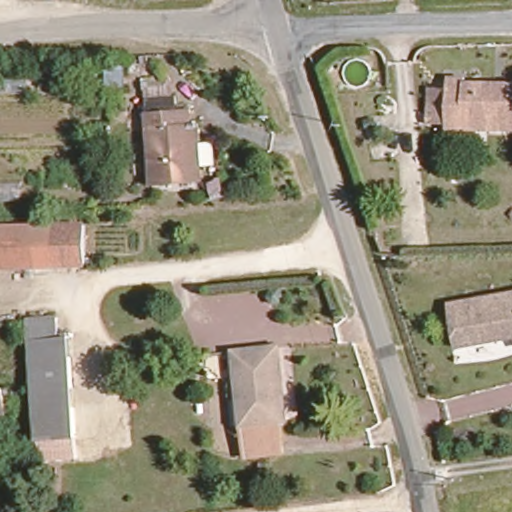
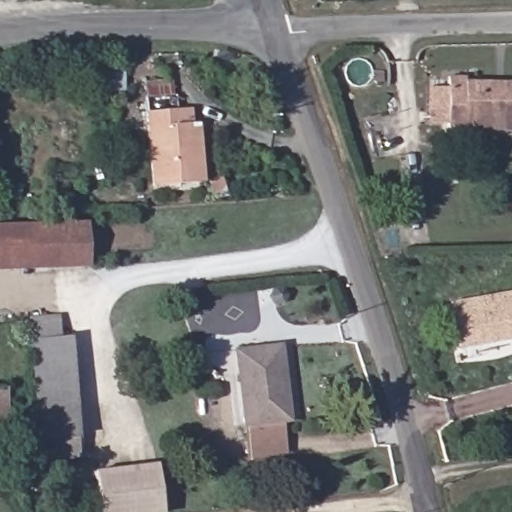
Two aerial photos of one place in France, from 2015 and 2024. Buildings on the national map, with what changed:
unchanged [(467,79),(512,80),(512,125),(447,125),(448,74),(467,74),(467,79)]
unchanged [(201,182),(194,182),(153,184),(144,96),(173,94),(175,110),(188,110),(188,123),(196,123),(201,182)]
unchanged [(37,223),(90,219),(92,259),(39,263),(37,223)]
unchanged [(39,263),(0,265),(0,225),(37,223),(39,263)]
unchanged [(512,338),(461,348),(453,306),(512,294),(512,338)]
unchanged [(46,461),(43,437),(42,422),(31,319),(58,316),(60,334),(71,334),(82,432),(84,456),(46,461)]
unchanged [(282,421),(285,455),(251,457),(242,363),(242,351),(282,349),(282,358),(287,420),(282,421)]
new [(157,462),(165,512),(100,512),(94,470),(157,462)]

